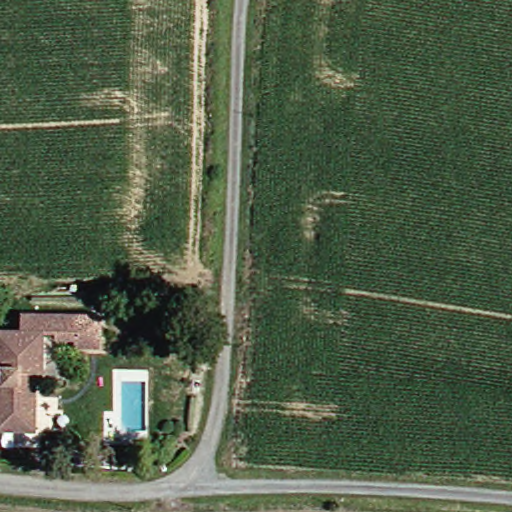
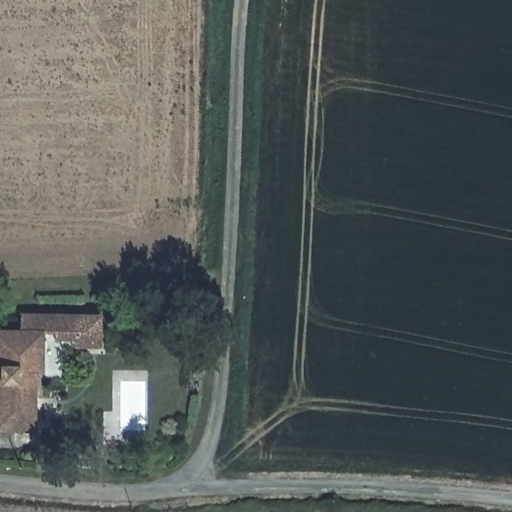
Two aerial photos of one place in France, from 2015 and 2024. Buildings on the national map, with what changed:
unchanged [(61,351),(61,368),(40,368),(42,427),(3,426),(0,361),(0,328),(84,326),(85,351),(61,351)]

